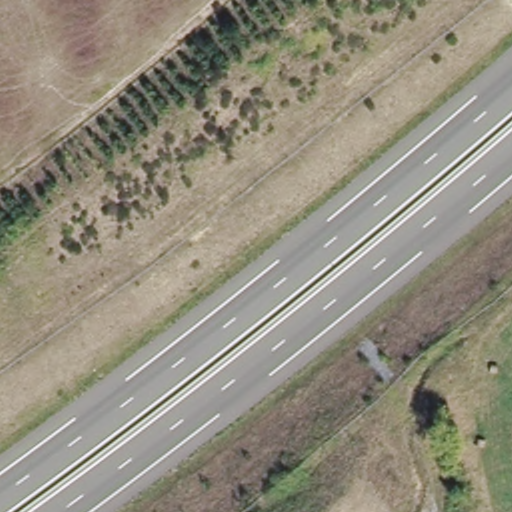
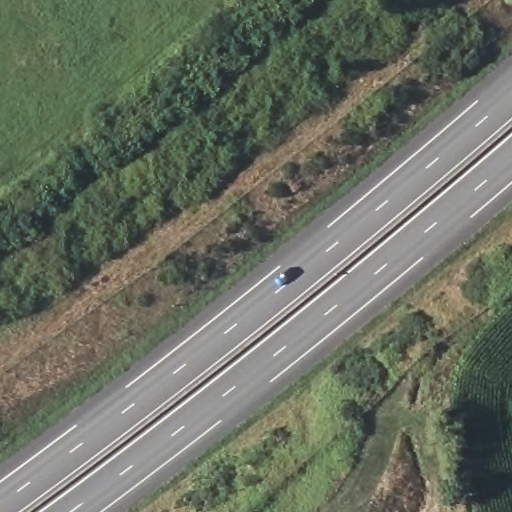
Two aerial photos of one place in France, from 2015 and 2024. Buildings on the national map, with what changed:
[]

